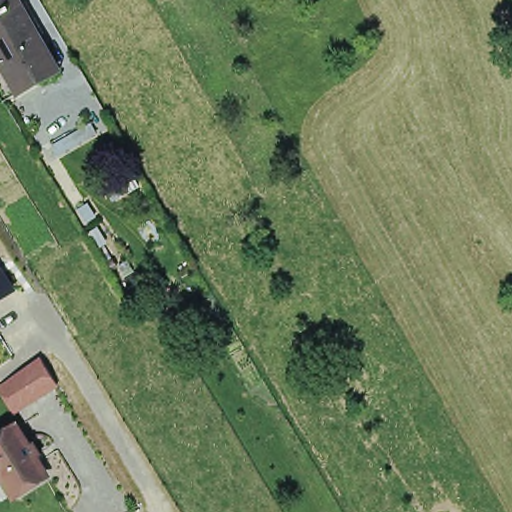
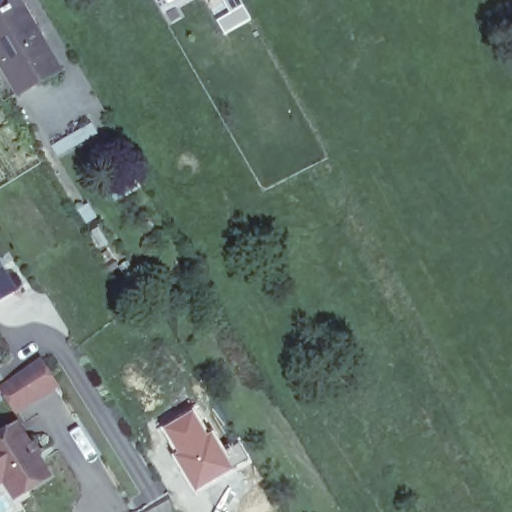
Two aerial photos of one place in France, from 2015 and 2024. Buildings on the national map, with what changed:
unchanged [(11,81),(0,63),(0,10),(17,1),(18,0),(22,0),(44,37),(39,40),(59,74),(26,94),(20,97),(4,105),(0,98),(0,87),(11,81)]
unchanged [(17,291),(0,302),(0,264),(17,291)]
unchanged [(19,409),(3,384),(43,358),(59,384),(19,409)]
new [(194,409),(209,432),(213,429),(225,450),(238,442),(250,461),(194,494),(171,454),(161,429),(194,409)]
unchanged [(5,486),(0,489),(0,446),(10,439),(17,435),(48,484),(42,489),(27,498),(16,504),(5,486)]

